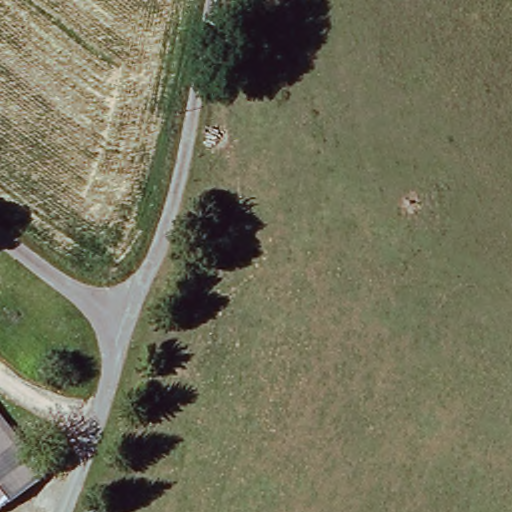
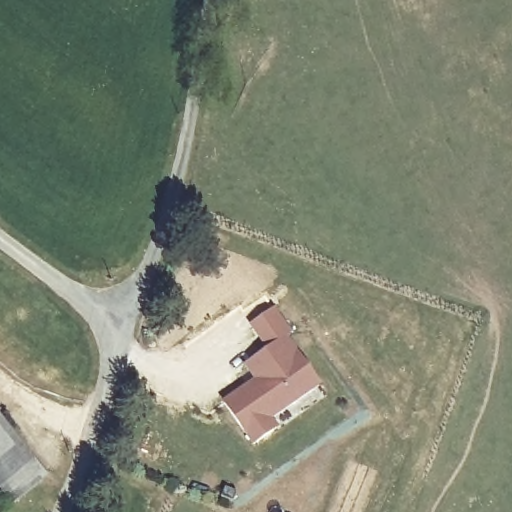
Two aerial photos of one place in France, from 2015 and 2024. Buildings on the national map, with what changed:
new [(238,377),(245,372),(241,366),(263,350),(246,325),(268,310),(285,335),(281,339),(314,386),(264,420),(271,430),(248,445),(219,403),(244,386),(238,377)]
unchanged [(2,512),(0,510),(0,406),(55,475),(10,512),(2,512)]

